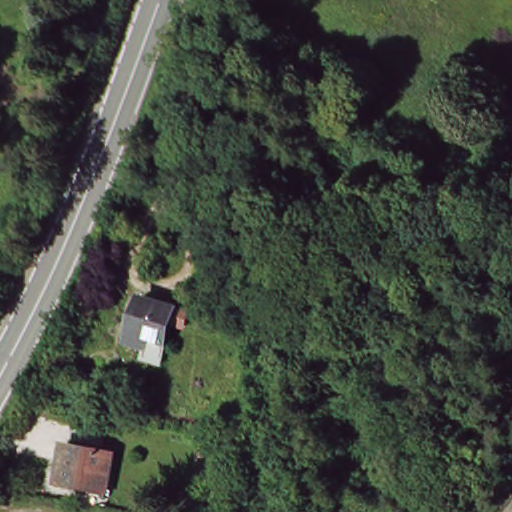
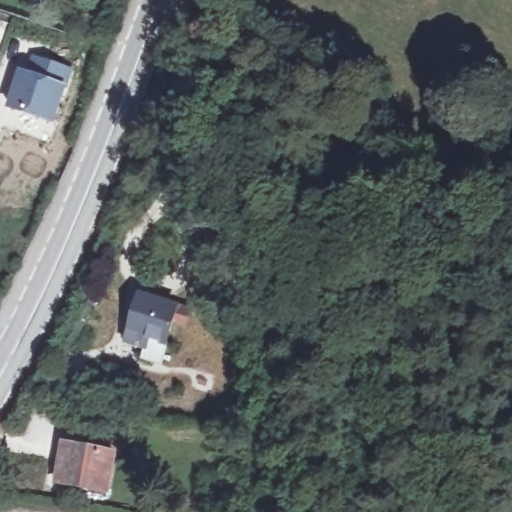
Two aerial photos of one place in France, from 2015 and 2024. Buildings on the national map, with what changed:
new [(69,69),(52,119),(12,105),(23,72),(30,74),(35,58),(69,69)]
unchanged [(140,289),(180,300),(164,367),(147,363),(149,349),(125,347),(140,289)]
unchanged [(67,443),(90,447),(117,453),(110,489),(59,479),(67,443)]

